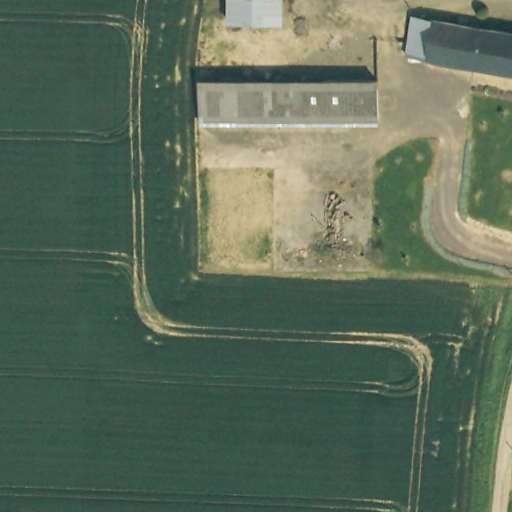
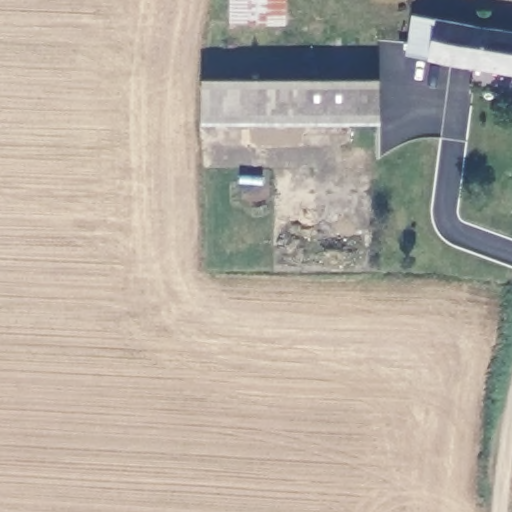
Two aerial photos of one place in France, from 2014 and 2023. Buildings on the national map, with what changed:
unchanged [(226,23),(227,0),(271,0),(270,26),(226,23)]
unchanged [(418,62),(413,62),(420,21),(512,33),(512,77),(452,67),(418,62)]
unchanged [(381,82),(383,126),(222,129),(201,129),(200,86),(224,85),(381,82)]

